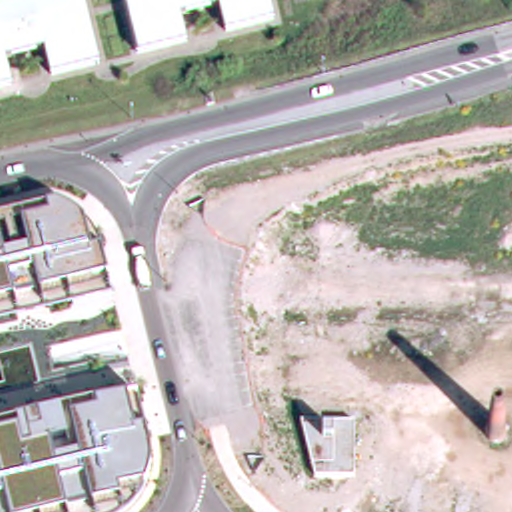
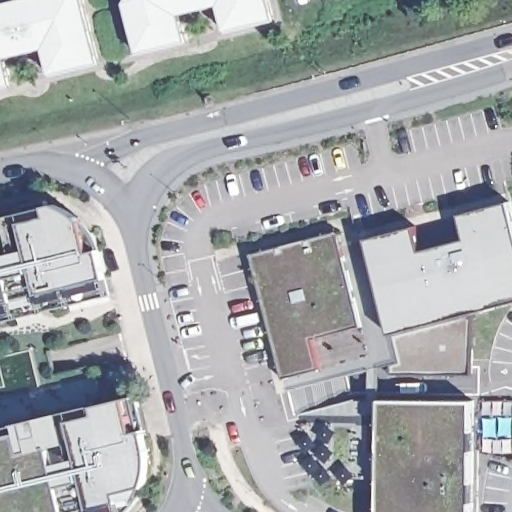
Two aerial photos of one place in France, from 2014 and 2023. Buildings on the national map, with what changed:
unchanged [(94,65),(45,76),(39,50),(0,59),(0,4),(17,0),(79,0),(87,36),(94,65)]
unchanged [(269,25),(220,36),(218,25),(215,10),(175,19),(180,39),(181,45),(132,56),(132,55),(126,27),(122,6),(126,0),(263,0),(265,9),(269,25)]
unchanged [(0,86),(0,59),(6,85),(0,86)]
new [(422,250),(470,239),(464,214),(511,202),(512,206),(512,302),(392,334),(368,238),(416,225),(422,250)]
unchanged [(57,203),(83,220),(99,239),(109,295),(0,321),(0,217),(44,205),(57,203)]
new [(314,339),(321,368),(285,378),(252,254),(337,232),(341,245),(362,325),(314,339)]
new [(290,390),(285,378),(321,368),(314,339),(362,325),(341,245),(368,238),(392,334),(399,362),(290,390)]
unchanged [(148,446),(149,462),(147,477),(142,492),(135,504),(126,512),(0,512),(0,429),(137,396),(148,446)]
new [(381,399),(380,474),(353,474),(355,423),(300,422),(297,414),(354,399),(381,399)]
new [(474,401),(473,512),(380,512),(380,474),(381,399),(474,401)]
unchanged [(355,423),(353,474),(313,476),(300,422),(355,423)]

